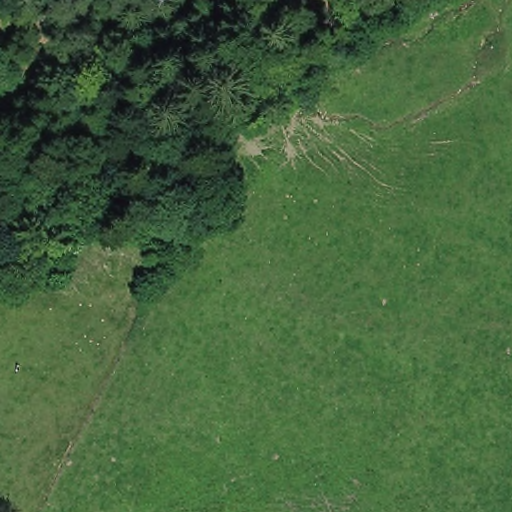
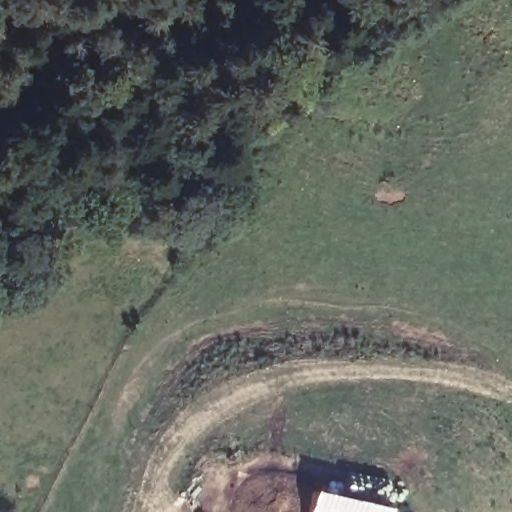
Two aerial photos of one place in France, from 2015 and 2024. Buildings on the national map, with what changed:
new [(389,510),(388,512),(308,512),(312,491),(389,510)]

